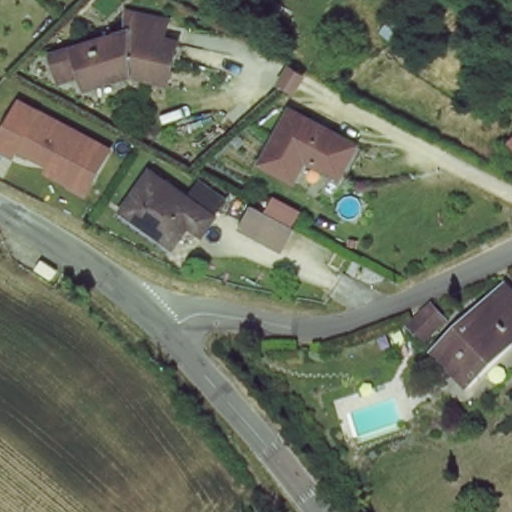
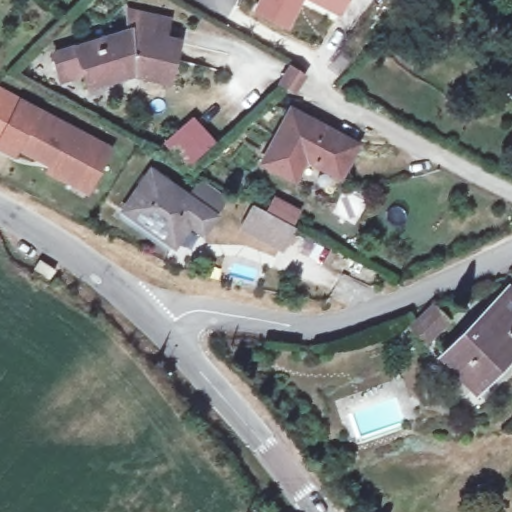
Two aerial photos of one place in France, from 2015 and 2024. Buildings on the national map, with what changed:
new [(252,10),(257,0),(304,0),(288,29),(252,10)]
new [(348,0),(340,16),(307,0),(348,0)]
unchanged [(56,51),(80,43),(128,27),(133,10),(168,16),(167,36),(180,40),(171,75),(135,68),(93,80),(88,68),(64,75),(56,51)]
unchanged [(305,67),(293,89),(274,82),(286,59),(305,67)]
new [(0,128),(0,89),(17,98),(0,128)]
unchanged [(14,145),(11,152),(0,146),(0,128),(17,98),(107,147),(88,181),(83,190),(43,168),(46,162),(14,145)]
unchanged [(288,105),(350,137),(334,166),(303,150),(290,171),(262,155),(288,105)]
new [(189,170),(163,143),(193,116),(217,141),(189,170)]
unchanged [(149,169),(211,214),(199,231),(184,221),(169,240),(120,205),(149,169)]
unchanged [(295,225),(279,253),(239,229),(254,201),(295,225)]
unchanged [(512,293),(512,348),(468,388),(436,355),(508,288),(512,293)]
unchanged [(436,310),(450,322),(430,341),(416,328),(436,310)]

